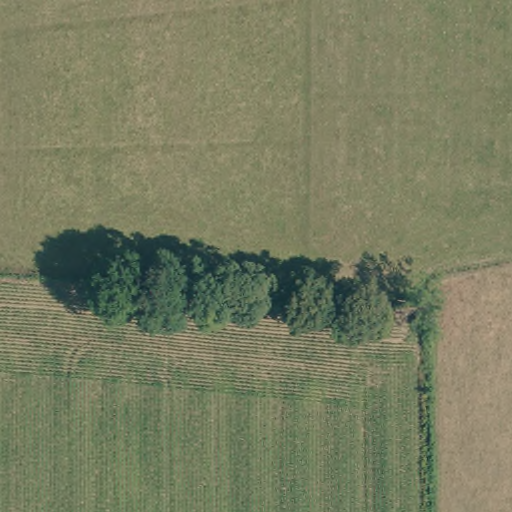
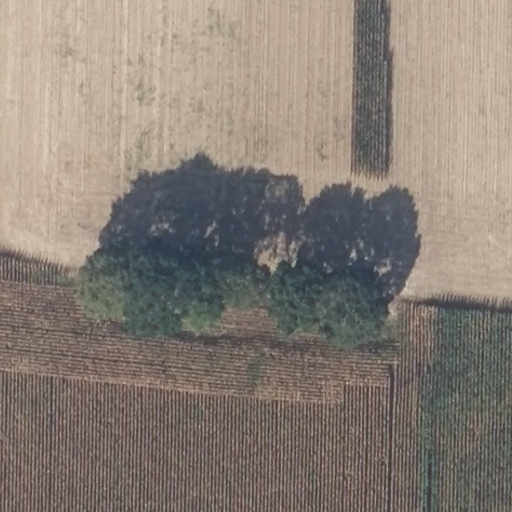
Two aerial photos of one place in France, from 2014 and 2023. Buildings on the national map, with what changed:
[]

